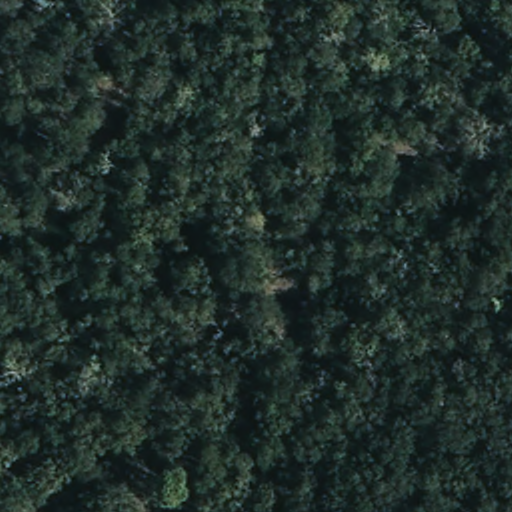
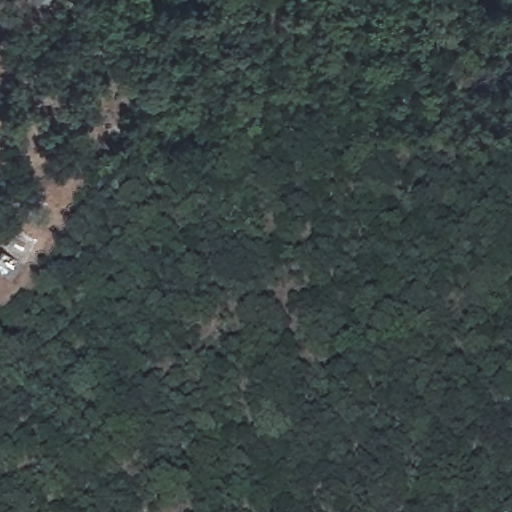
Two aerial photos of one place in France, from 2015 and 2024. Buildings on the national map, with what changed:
unchanged [(33,0),(56,0),(45,11),(33,0)]

